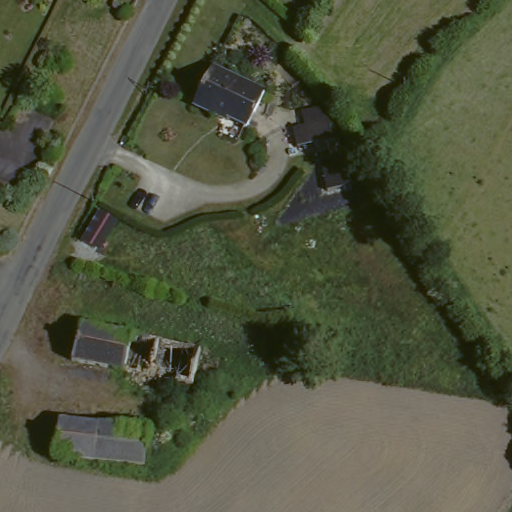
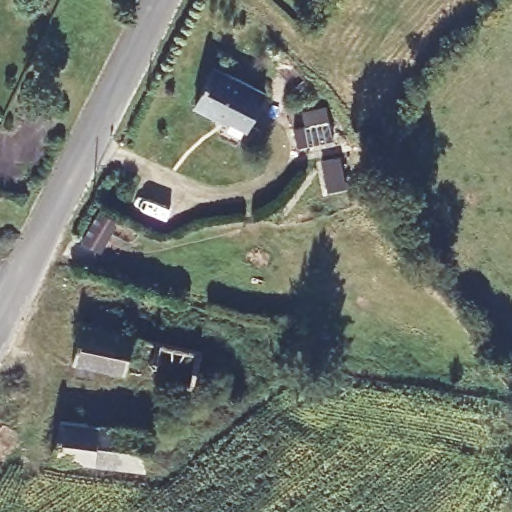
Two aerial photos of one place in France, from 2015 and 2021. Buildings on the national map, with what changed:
unchanged [(265,85),(251,121),(224,112),(222,116),(199,105),(216,65),(265,85)]
unchanged [(291,136),(305,130),(301,120),(328,113),(337,142),(296,153),(291,136)]
unchanged [(206,342),(198,380),(131,368),(128,374),(119,373),(120,365),(81,357),(88,318),(206,342)]
unchanged [(162,463),(143,461),(53,452),(57,415),(146,425),(165,427),(162,463)]

